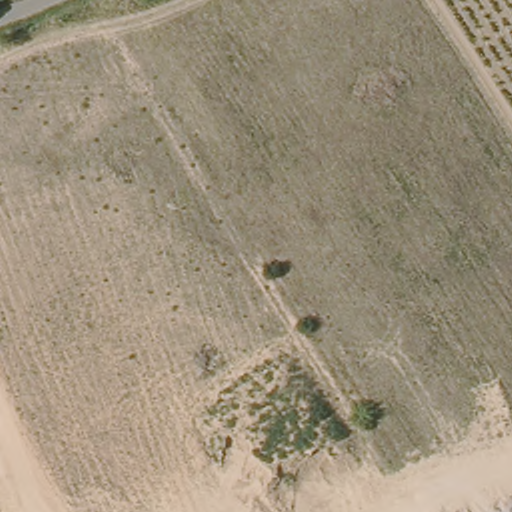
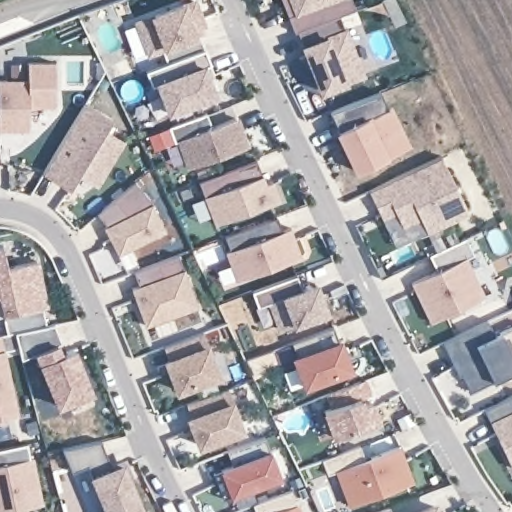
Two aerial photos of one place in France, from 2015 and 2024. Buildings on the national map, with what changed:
new [(187,0),(190,0),(196,16),(189,19),(200,47),(163,61),(158,47),(145,52),(133,21),(187,0)]
new [(355,4),(339,11),(296,27),(282,0),(353,0),(355,4)]
new [(339,11),(362,71),(321,87),(296,27),(339,11)]
new [(205,49),(210,63),(205,64),(219,97),(168,117),(155,85),(152,86),(147,72),(205,49)]
new [(28,62),(54,60),(56,106),(29,107),(30,128),(0,130),(0,80),(28,79),(28,62)]
new [(380,91),(388,106),(391,104),(409,144),(388,155),(355,173),(336,132),(329,113),(380,91)]
new [(81,100),(109,117),(102,129),(119,139),(93,182),(76,172),(67,186),(40,170),(81,100)]
new [(224,120),(234,147),(240,145),(246,160),(208,175),(202,160),(179,169),(168,141),(224,120)]
new [(442,156),(470,212),(398,248),(370,191),(442,156)]
new [(208,175),(246,160),(253,157),(263,180),(270,178),(277,197),(212,221),(196,179),(208,175)]
new [(155,203),(153,204),(166,230),(119,253),(105,228),(108,226),(98,214),(135,181),(155,203)]
new [(279,217),(284,230),(291,228),(304,256),(237,283),(225,251),(231,249),(226,235),(279,217)]
new [(465,238),(485,277),(460,289),(467,305),(432,323),(423,306),(430,303),(412,264),(465,238)]
new [(34,259),(44,305),(39,306),(43,324),(12,331),(4,332),(0,314),(0,245),(4,266),(34,259)]
new [(199,305),(145,326),(131,287),(139,284),(134,271),(179,254),(199,305)]
new [(299,287),(304,285),(313,282),(317,293),(324,310),(277,328),(267,301),(255,305),(249,290),(294,273),(299,287)]
new [(43,324),(50,322),(58,341),(53,343),(57,353),(70,347),(88,391),(55,404),(33,351),(18,357),(16,347),(12,331),(43,324)]
new [(490,324),(495,335),(502,331),(504,335),(512,331),(512,372),(493,382),(472,393),(464,375),(460,377),(445,345),(490,324)]
new [(201,330),(206,344),(203,345),(214,373),(175,388),(164,359),(166,358),(160,344),(201,330)]
new [(16,347),(1,350),(15,414),(0,417),(0,333),(12,331),(16,347)]
new [(337,334),(354,376),(309,393),(299,366),(302,364),(296,350),(337,334)]
new [(373,398),(370,399),(380,426),(338,442),(328,415),(336,412),(331,397),(367,384),(373,398)]
new [(225,385),(231,400),(228,401),(238,427),(197,443),(186,416),(189,415),(183,401),(225,385)]
new [(512,392),(512,459),(485,405),(512,392)]
new [(280,476),(229,496),(218,468),(232,463),(227,450),(264,436),(270,449),(280,476)]
new [(28,457),(30,456),(40,503),(0,512),(0,447),(24,442),(28,457)]
new [(363,458),(369,455),(397,445),(410,480),(347,503),(334,469),(325,472),(319,457),(358,444),(363,458)]
new [(68,454),(107,446),(118,474),(128,470),(145,512),(92,512),(78,477),(68,454)]
new [(288,487),(297,512),(253,512),(250,502),(288,487)]
new [(391,512),(373,512),(389,506),(391,512)]
new [(418,512),(436,506),(439,512),(418,512)]

